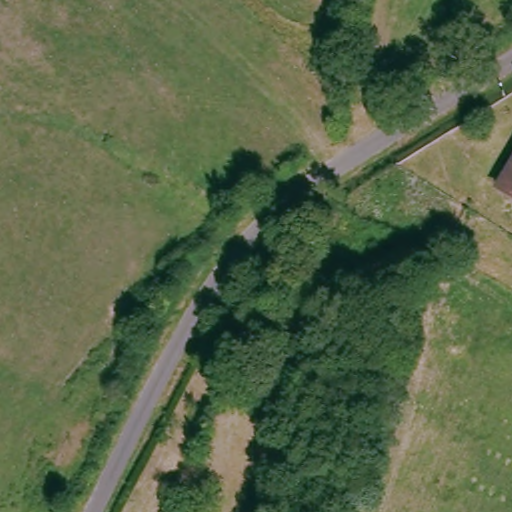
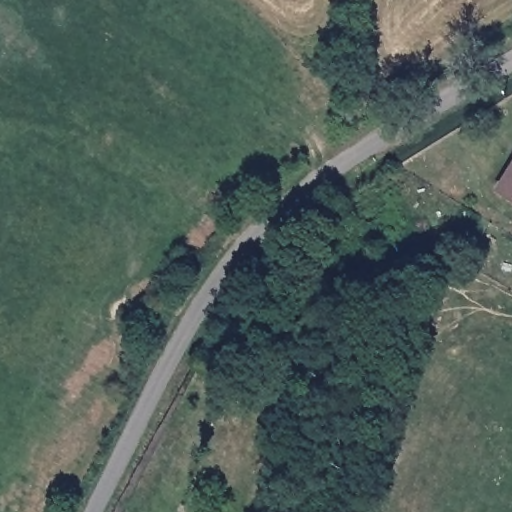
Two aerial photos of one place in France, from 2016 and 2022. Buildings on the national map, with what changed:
unchanged [(512,164),(512,192),(500,184),(512,164)]

